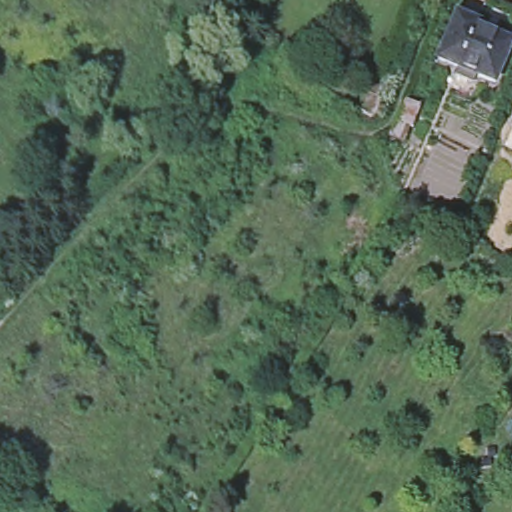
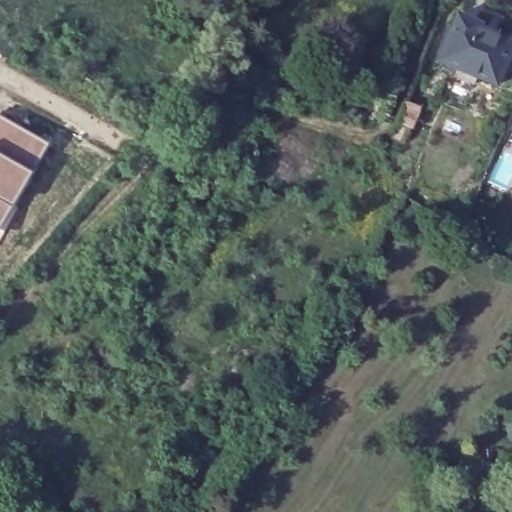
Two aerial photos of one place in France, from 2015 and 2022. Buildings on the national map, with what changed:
unchanged [(480,27),(477,32),(512,47),(495,86),(440,62),(459,17),(480,27)]
unchanged [(333,55),(362,70),(354,87),(324,72),(333,55)]
unchanged [(412,93),(430,104),(422,119),(403,108),(412,93)]
new [(50,143),(0,226),(0,115),(50,143)]
unchanged [(512,136),(512,141),(510,141),(512,136)]

